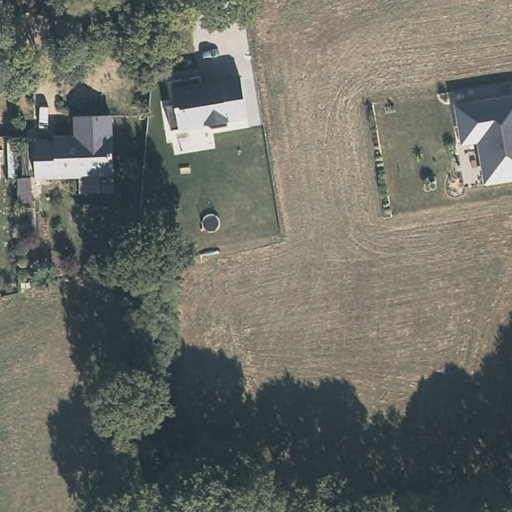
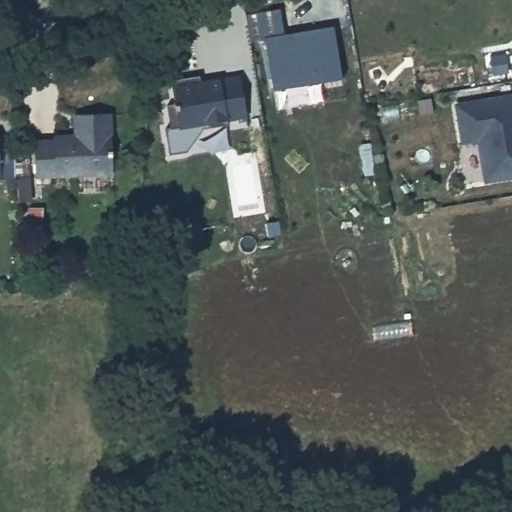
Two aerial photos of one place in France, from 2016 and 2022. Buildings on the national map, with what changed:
new [(333,26),(344,80),(273,90),(265,36),(333,26)]
unchanged [(247,117),(174,129),(169,86),(241,74),(247,117)]
unchanged [(512,180),(483,184),(477,146),(460,146),(454,106),(512,95),(512,180)]
unchanged [(76,134),(75,110),(111,110),(113,170),(36,171),(35,135),(76,134)]
unchanged [(1,182),(0,182),(0,148),(1,182)]

